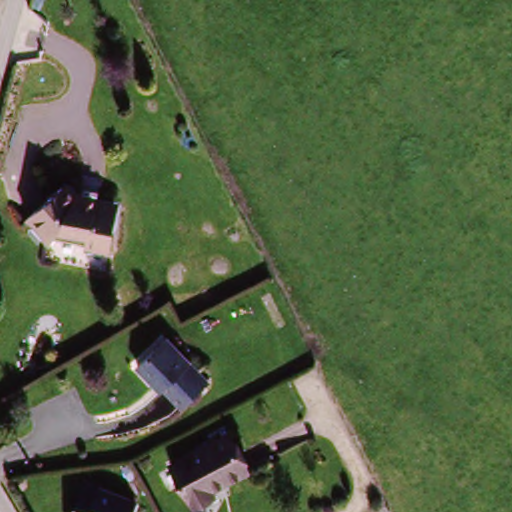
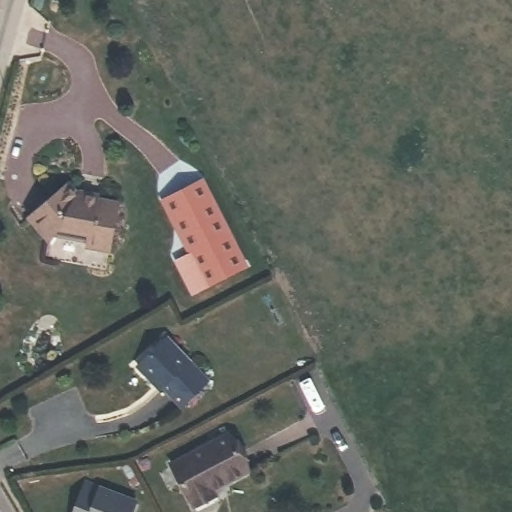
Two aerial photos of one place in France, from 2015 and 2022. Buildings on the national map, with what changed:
new [(248,266),(192,295),(172,260),(187,252),(160,200),(203,177),(248,266)]
unchanged [(67,182),(78,199),(114,203),(106,252),(81,250),(81,244),(57,239),(50,240),(38,248),(19,222),(67,182)]
unchanged [(140,360),(168,332),(211,375),(190,398),(167,377),(160,383),(153,376),(140,360)]
unchanged [(189,500),(172,465),(237,435),(252,471),(214,488),(218,500),(193,511),(189,500)]
unchanged [(131,512),(78,512),(86,493),(131,512)]

